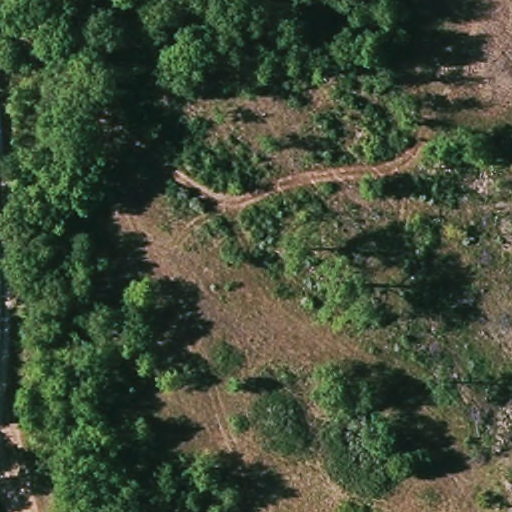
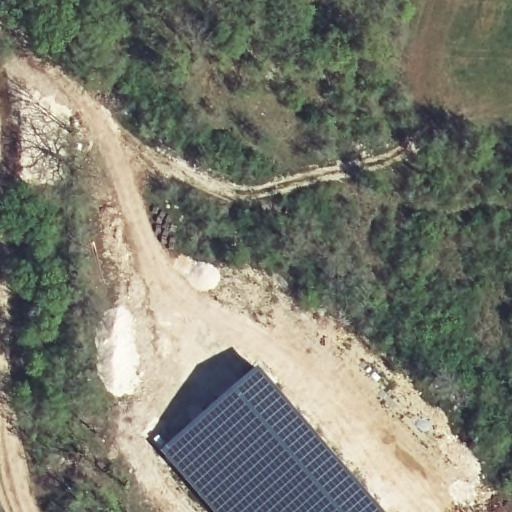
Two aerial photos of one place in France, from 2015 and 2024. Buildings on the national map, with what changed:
new [(351,466),(362,479),(390,512),(212,512),(158,450),(258,365),(351,466)]

